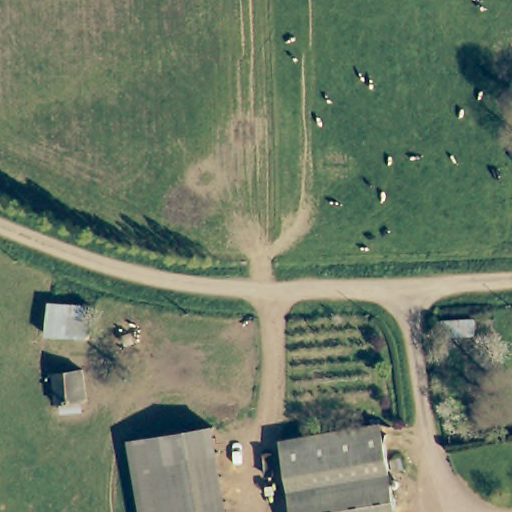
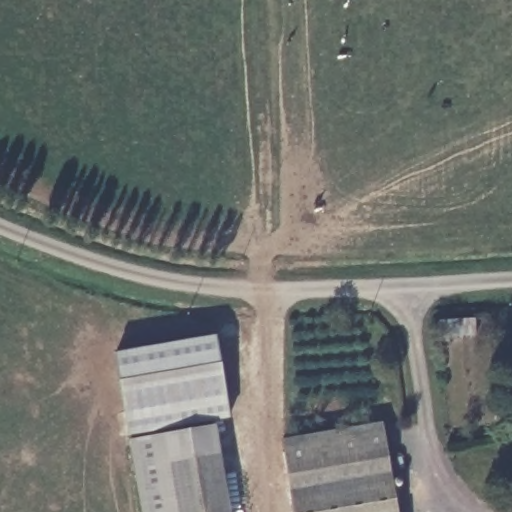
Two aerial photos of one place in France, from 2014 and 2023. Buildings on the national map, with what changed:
unchanged [(441,338),(440,322),(476,321),(476,338),(441,338)]
new [(227,417),(127,435),(114,355),(214,337),(227,417)]
demolished [(55,375),(84,371),(90,401),(61,405),(55,375)]
unchanged [(398,512),(296,512),(284,440),(357,428),(383,423),(390,458),(398,512)]
unchanged [(215,428),(229,512),(143,512),(131,443),(215,428)]

